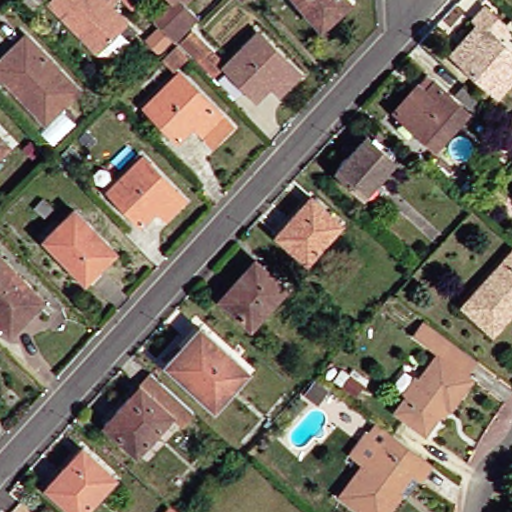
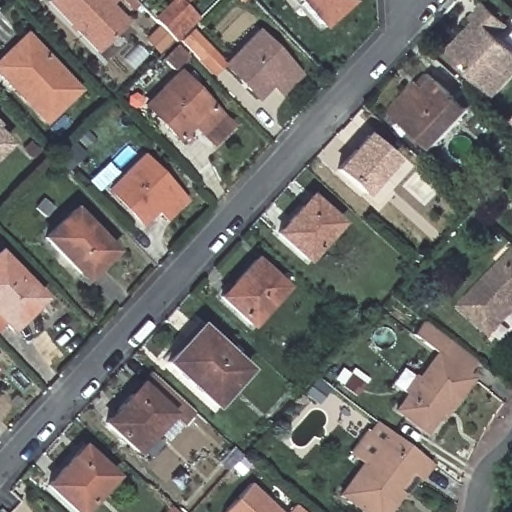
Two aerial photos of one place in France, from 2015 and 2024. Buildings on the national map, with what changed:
unchanged [(40,0),(99,0),(108,9),(118,19),(87,48),(40,0)]
unchanged [(99,0),(117,0),(108,9),(99,0)]
unchanged [(169,37),(151,17),(170,0),(205,0),(188,17),(169,37)]
unchanged [(297,0),(345,0),(318,23),(297,0)]
unchanged [(494,37),(512,55),(512,76),(493,96),(447,53),(473,24),(469,20),(481,7),(503,28),(494,37)]
unchanged [(205,49),(193,61),(174,42),(187,30),(205,49)]
unchanged [(40,119),(0,77),(0,54),(23,33),(74,88),(40,119)]
unchanged [(149,52),(142,45),(154,34),(161,42),(149,52)]
unchanged [(272,96),(263,87),(248,101),(218,70),(209,78),(194,61),(204,50),(218,63),(248,34),(292,77),(272,96)]
unchanged [(182,54),(167,70),(156,59),(171,44),(182,54)]
unchanged [(225,126),(205,145),(187,126),(172,140),(137,105),(172,72),(225,126)]
unchanged [(459,113),(426,150),(384,112),(408,86),(416,93),(426,83),(459,113)]
unchanged [(447,94),(456,85),(475,103),(466,113),(447,94)]
unchanged [(359,192),(330,165),(362,132),(390,158),(359,192)]
unchanged [(0,146),(0,139),(4,142),(0,146)]
unchanged [(161,216),(151,207),(138,221),(104,187),(139,154),(180,197),(161,216)]
unchanged [(337,221),(303,259),(271,230),(306,193),(337,221)]
unchanged [(49,205),(40,214),(30,205),(39,196),(49,205)]
unchanged [(80,276),(72,267),(40,236),(70,207),(101,239),(109,247),(80,276)]
unchanged [(488,334),(456,305),(509,244),(512,247),(512,307),(488,334)]
unchanged [(281,285),(244,323),(214,294),(250,257),(281,285)]
unchanged [(13,316),(0,328),(0,327),(0,260),(34,296),(13,316)]
unchanged [(209,404),(161,360),(178,342),(195,323),(201,328),(243,367),(209,404)]
unchanged [(464,382),(467,384),(443,414),(439,411),(419,437),(389,412),(434,355),(417,338),(428,325),(444,341),(477,366),(464,382)]
unchanged [(156,421),(121,459),(89,430),(136,380),(180,420),(168,432),(156,421)]
unchanged [(375,512),(356,512),(332,493),(379,430),(423,463),(411,478),(397,495),(391,492),(375,512)]
unchanged [(75,512),(72,512),(42,483),(78,445),(109,475),(75,512)]
new [(250,486),(278,512),(226,512),(250,486)]
unchanged [(166,505),(173,512),(160,512),(166,505)]
new [(299,506),(305,512),(294,512),(299,506)]

